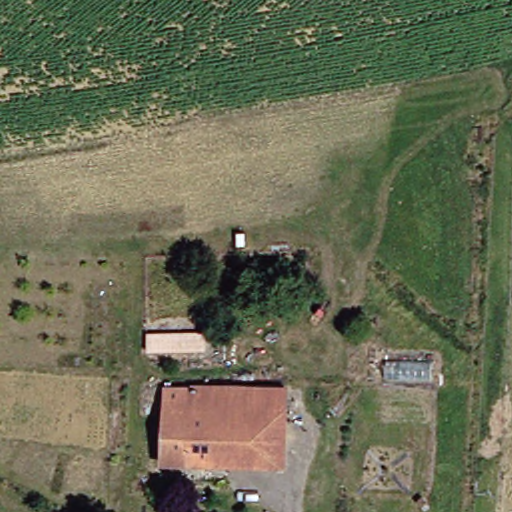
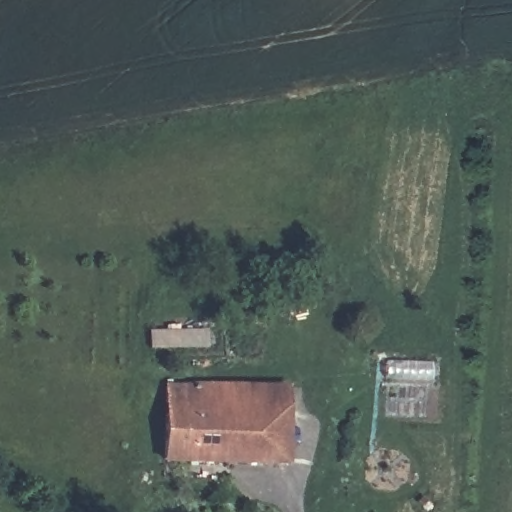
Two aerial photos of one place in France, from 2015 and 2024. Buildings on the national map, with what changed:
unchanged [(206,334),(151,335),(149,319),(206,320),(206,334)]
unchanged [(155,462),(155,386),(299,387),(298,464),(155,462)]

